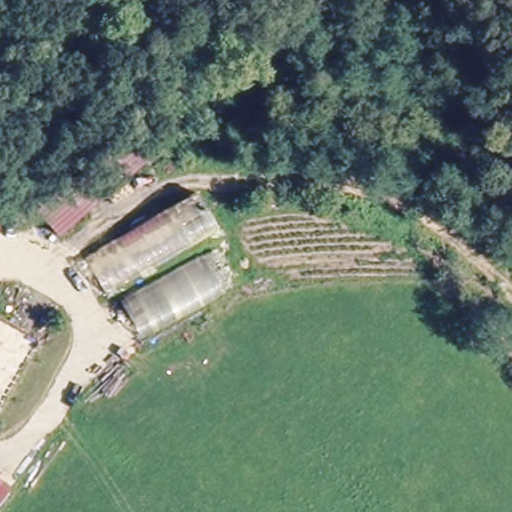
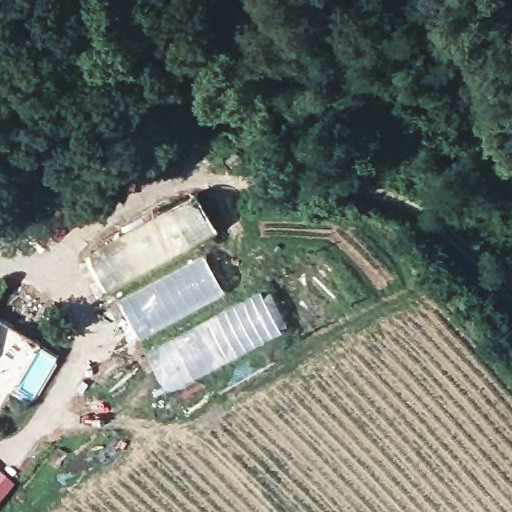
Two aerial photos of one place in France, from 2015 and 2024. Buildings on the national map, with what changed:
unchanged [(40,209),(98,165),(117,190),(61,235),(40,209)]
unchanged [(82,256),(202,194),(224,233),(205,243),(230,290),(139,336),(115,293),(102,299),(82,256)]
new [(190,330),(262,289),(265,293),(271,290),(281,312),(278,314),(285,331),(185,385),(166,393),(146,353),(190,330)]
unchanged [(31,337),(0,392),(0,319),(31,337)]
unchanged [(0,504),(0,480),(11,489),(0,504)]

